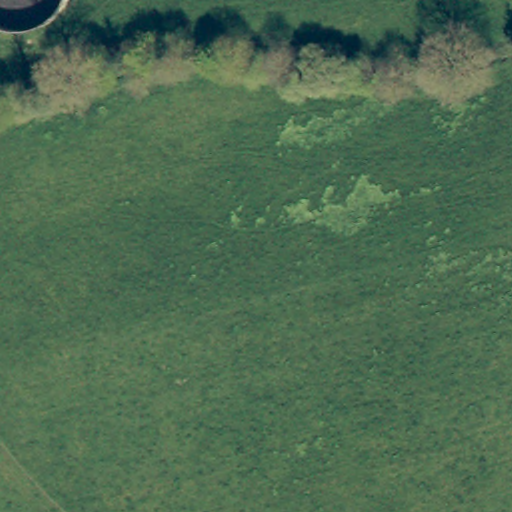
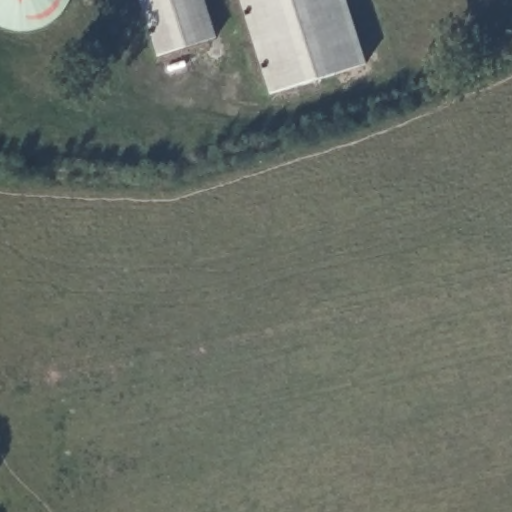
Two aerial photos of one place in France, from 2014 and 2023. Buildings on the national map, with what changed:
new [(217,39),(156,58),(138,0),(205,0),(217,39)]
new [(364,64),(268,95),(239,0),(346,0),(364,64)]

